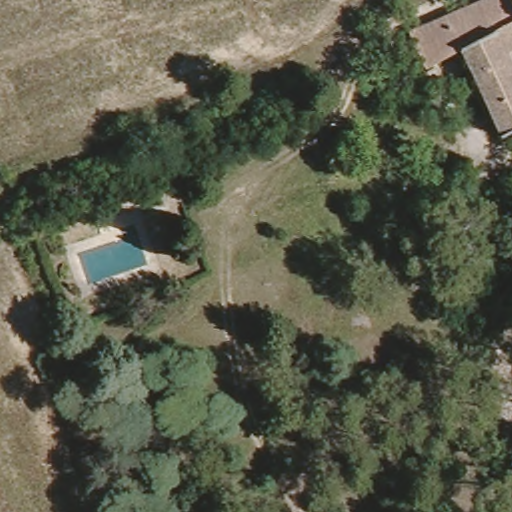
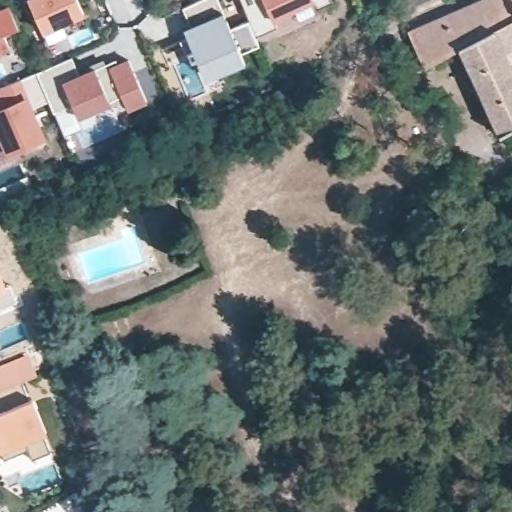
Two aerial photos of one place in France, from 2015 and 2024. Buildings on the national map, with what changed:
new [(83,13),(41,31),(28,0),(77,0),(83,13)]
new [(224,14),(190,27),(183,8),(200,0),(218,0),(224,14)]
new [(331,3),(317,9),(313,0),(272,19),(276,28),(255,37),(240,0),(330,0),(331,3)]
unchanged [(498,116),(480,77),(470,56),(454,21),(465,17),(504,0),(512,0),(512,141),(509,143),(498,116)]
new [(18,29),(4,35),(9,47),(0,51),(0,13),(9,8),(18,29)]
new [(259,46),(240,53),(244,63),(220,72),(225,85),(209,92),(193,51),(185,54),(179,40),(226,21),(230,29),(249,21),(259,46)]
unchanged [(435,73),(417,37),(454,21),(470,56),(435,73)]
new [(146,102),(127,110),(121,97),(77,116),(72,105),(54,112),(49,101),(37,72),(72,57),(79,75),(116,60),(118,65),(129,61),(146,102)]
new [(37,72),(49,101),(31,108),(45,142),(20,153),(13,137),(0,143),(0,88),(37,72)]
new [(0,312),(0,265),(11,289),(18,305),(0,312)]
new [(37,375),(21,381),(0,390),(0,363),(28,351),(37,375)]
new [(33,396),(47,431),(43,433),(50,451),(32,459),(28,449),(4,459),(2,452),(0,453),(0,390),(21,381),(28,398),(33,396)]

